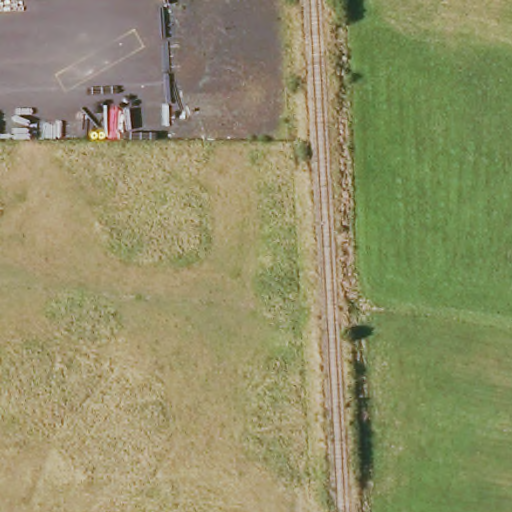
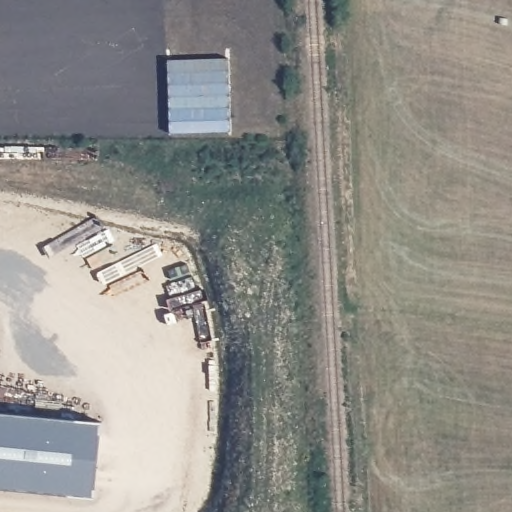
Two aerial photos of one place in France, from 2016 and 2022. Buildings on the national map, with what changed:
new [(94,498),(0,489),(0,415),(100,425),(94,498)]

